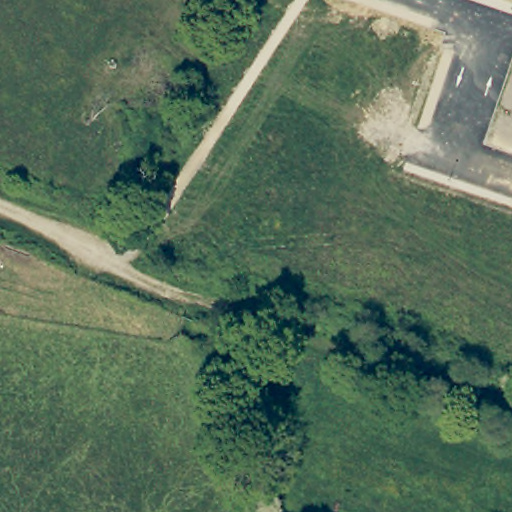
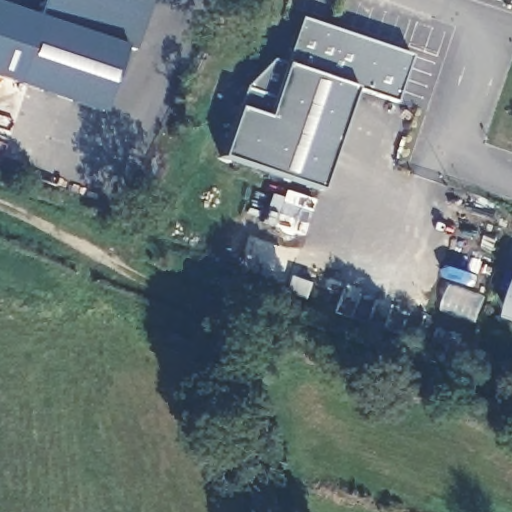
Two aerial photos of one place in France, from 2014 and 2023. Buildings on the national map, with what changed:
new [(41,17),(45,0),(147,0),(151,1),(134,50),(125,47),(102,113),(18,84),(41,17)]
new [(239,108),(245,87),(272,60),(285,65),(301,19),(410,55),(394,101),(353,88),(318,189),(222,156),(239,108)]
demolished [(195,208),(171,201),(191,152),(211,159),(195,208)]
new [(512,321),(510,320),(512,314),(512,321)]

